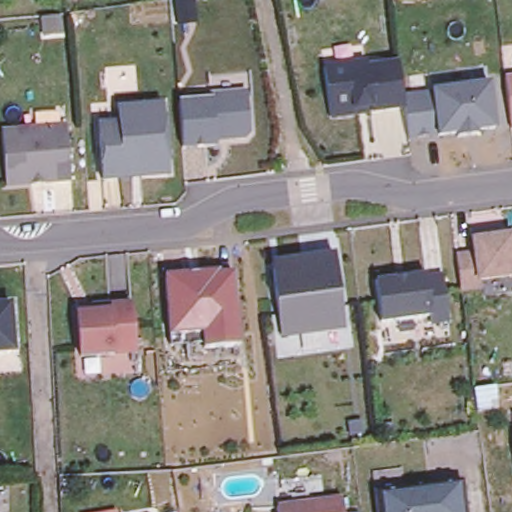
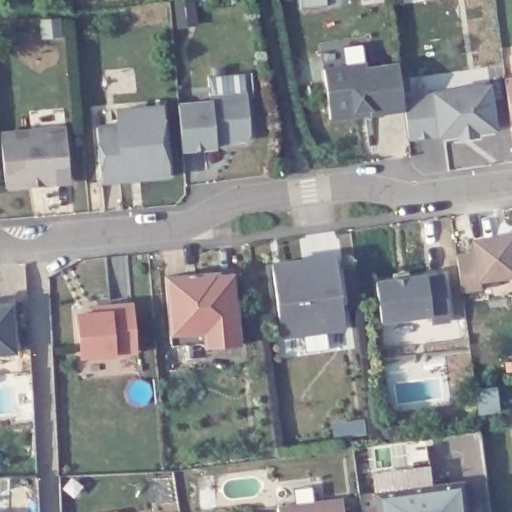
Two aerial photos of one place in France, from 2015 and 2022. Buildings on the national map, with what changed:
unchanged [(331,120),(325,70),(366,64),(366,69),(400,65),(404,98),(405,110),(371,114),(357,116),(331,120)]
unchanged [(433,94),(433,92),(490,85),(496,130),(477,132),(478,136),(458,139),(458,135),(440,137),(439,135),(410,140),(405,111),(405,110),(404,98),(433,94)]
unchanged [(512,85),(512,132),(506,86),(512,85)]
unchanged [(216,147),(183,150),(181,135),(179,105),(211,102),(211,97),(247,95),(250,135),(245,140),(231,141),(216,142),(216,147)]
unchanged [(102,177),(97,122),(118,120),(116,105),(164,101),(170,171),(143,174),(129,175),(102,177)]
unchanged [(31,183),(31,181),(5,184),(1,130),(66,124),(71,178),(44,180),(44,182),(31,183)]
unchanged [(457,257),(475,255),(474,241),(512,236),(512,276),(480,280),(481,288),(462,291),(460,270),(457,257)]
unchanged [(327,330),(282,336),(272,265),(336,256),(344,313),(345,327),(327,330)]
unchanged [(205,270),(225,268),(225,270),(240,269),(241,296),(242,296),(246,341),(210,344),(210,336),(176,340),(171,272),(193,270),(205,270)]
unchanged [(428,270),(428,273),(445,271),(451,316),(433,318),(432,311),(382,317),(376,277),(428,270)]
unchanged [(78,310),(93,309),(93,303),(110,301),(125,300),(132,300),(137,348),(135,348),(81,353),(78,310)]
unchanged [(15,353),(0,354),(0,307),(11,306),(15,353)]
unchanged [(405,490),(463,482),(467,512),(378,512),(376,493),(405,490)]
unchanged [(343,495),(345,512),(279,512),(278,502),(343,495)]

